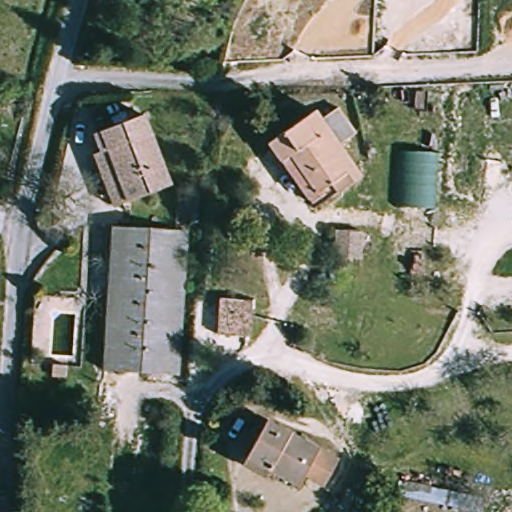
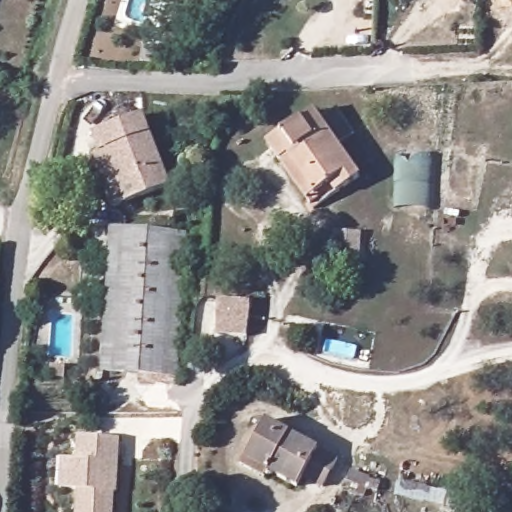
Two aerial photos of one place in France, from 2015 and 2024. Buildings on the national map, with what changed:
unchanged [(264,134),(313,101),(360,171),(310,205),(302,192),(278,156),(264,134)]
unchanged [(97,152),(102,150),(96,133),(142,115),(170,185),(130,203),(118,208),(97,152)]
unchanged [(405,151),(437,154),(435,205),(401,203),(405,151)]
unchanged [(365,230),(362,259),(335,258),(336,229),(365,230)]
unchanged [(111,244),(186,245),(185,272),(110,270),(111,244)]
unchanged [(106,355),(110,270),(185,272),(181,357),(106,355)]
unchanged [(251,332),(225,331),(227,297),(253,297),(251,332)]
unchanged [(245,457),(268,411),(342,453),(329,481),(311,471),(303,488),(273,473),(265,486),(236,472),(245,457)]
new [(119,442),(115,495),(113,496),(112,512),(76,512),(77,495),(75,494),(60,493),(62,463),(76,464),(78,440),(119,442)]
unchanged [(402,479),(485,495),(482,512),(397,494),(402,479)]

